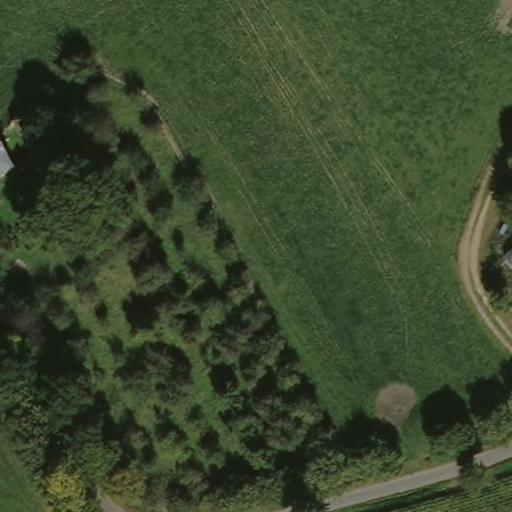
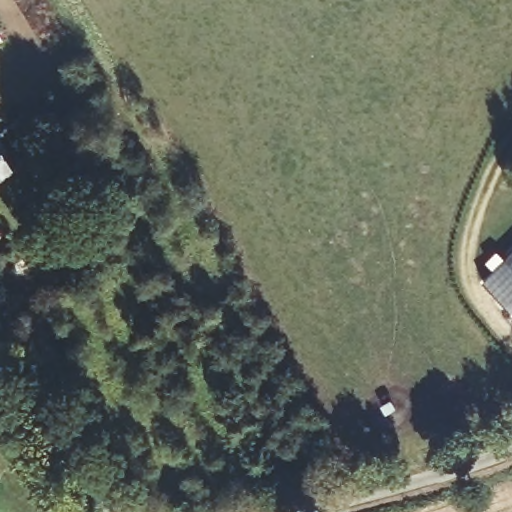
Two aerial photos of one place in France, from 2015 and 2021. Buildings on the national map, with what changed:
unchanged [(5,134),(19,169),(0,181),(0,137),(5,134)]
unchanged [(5,234),(0,239),(0,227),(5,234)]
unchanged [(2,254),(0,256),(0,250),(2,254)]
unchanged [(512,254),(512,265),(506,260),(512,254)]
new [(512,310),(483,282),(506,260),(512,265),(512,310)]

